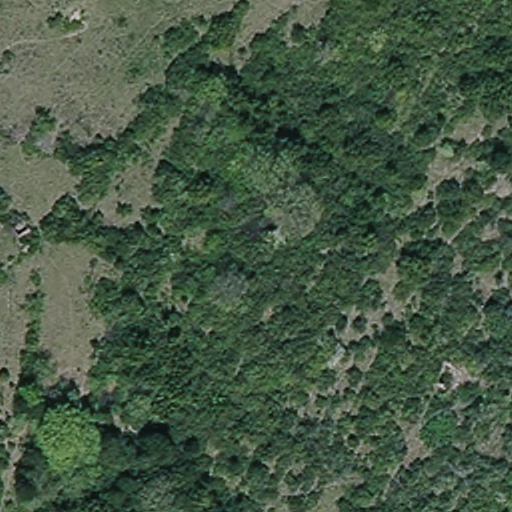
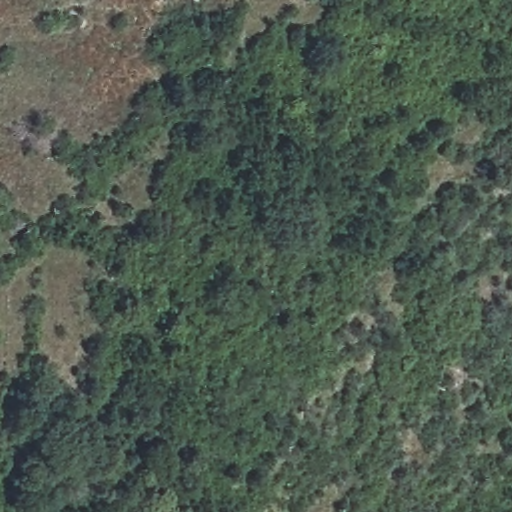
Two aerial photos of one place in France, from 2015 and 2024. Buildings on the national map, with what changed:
[]

